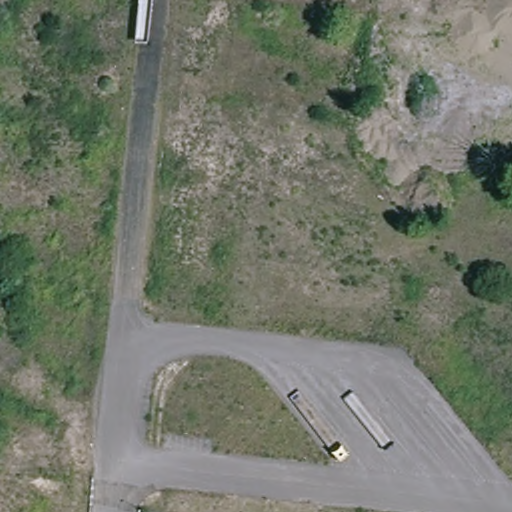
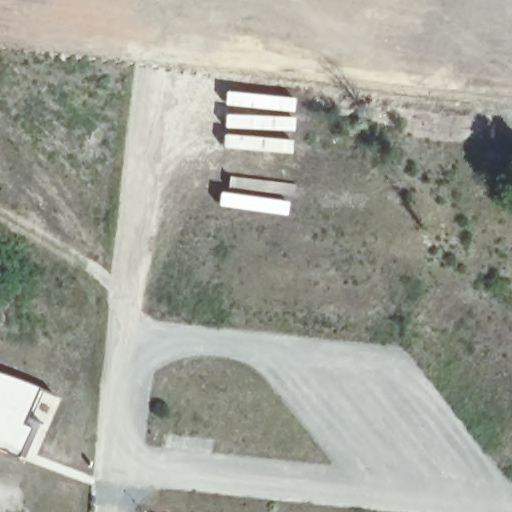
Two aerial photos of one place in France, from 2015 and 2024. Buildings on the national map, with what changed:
new [(0,449),(0,373),(5,375),(24,383),(37,388),(23,424),(29,427),(17,455),(0,449)]

